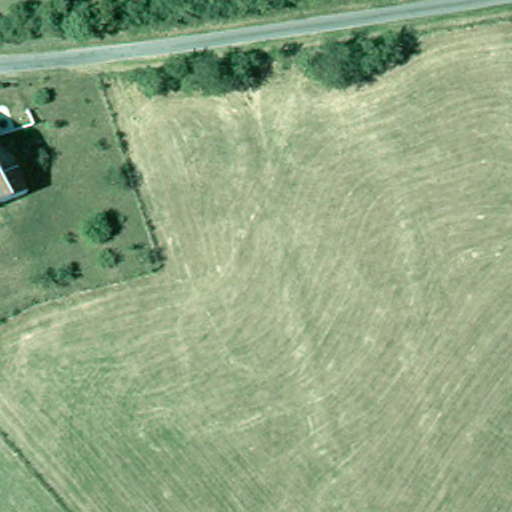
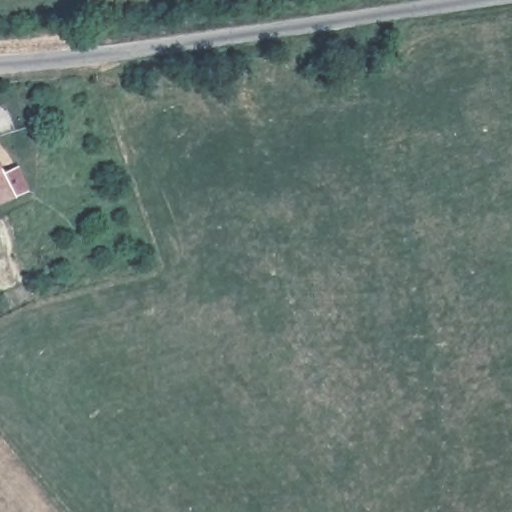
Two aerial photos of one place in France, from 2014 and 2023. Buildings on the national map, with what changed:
unchanged [(30,196),(17,202),(6,207),(0,210),(0,161),(3,169),(7,179),(20,173),(30,196)]

